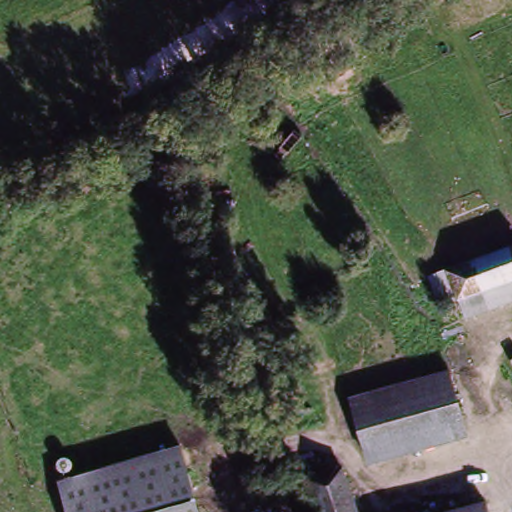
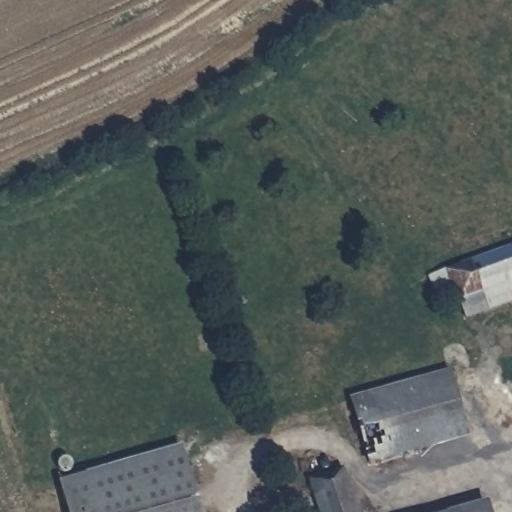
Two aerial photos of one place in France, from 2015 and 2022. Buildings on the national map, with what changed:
unchanged [(467,314),(460,296),(440,302),(431,276),(448,269),(512,246),(512,298),(467,314)]
unchanged [(365,458),(351,396),(447,372),(465,437),(365,458)]
unchanged [(201,512),(71,512),(60,477),(180,442),(201,512)]
unchanged [(298,461),(332,450),(353,503),(364,501),(368,512),(317,512),(298,461)]
unchanged [(485,499),(489,512),(437,512),(485,499)]

